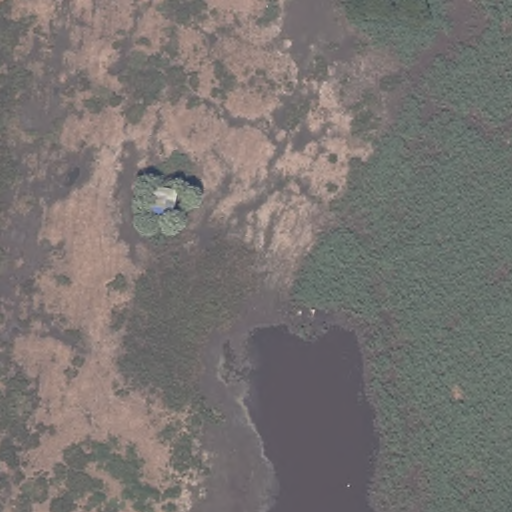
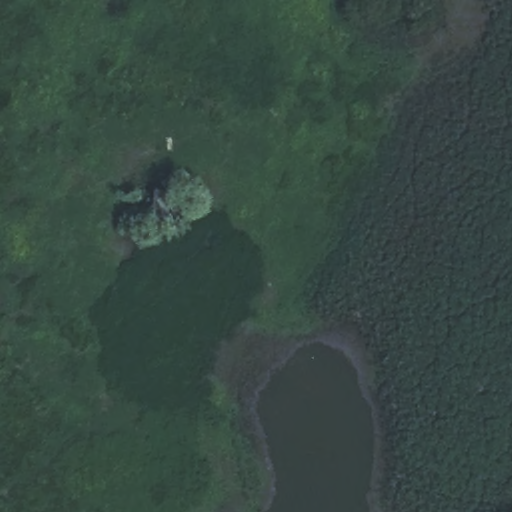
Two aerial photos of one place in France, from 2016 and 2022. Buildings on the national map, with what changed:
unchanged [(178,217),(155,212),(160,186),(184,189),(178,217)]

